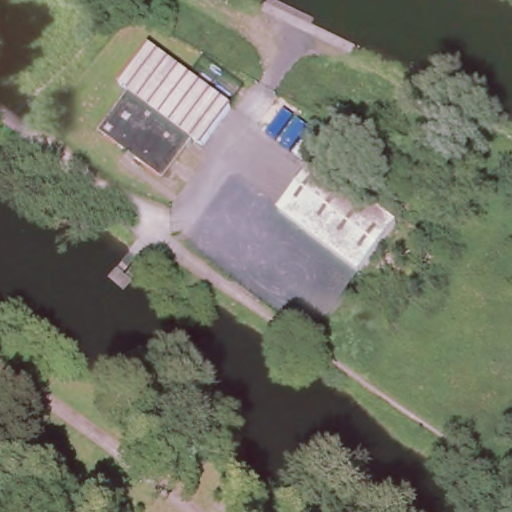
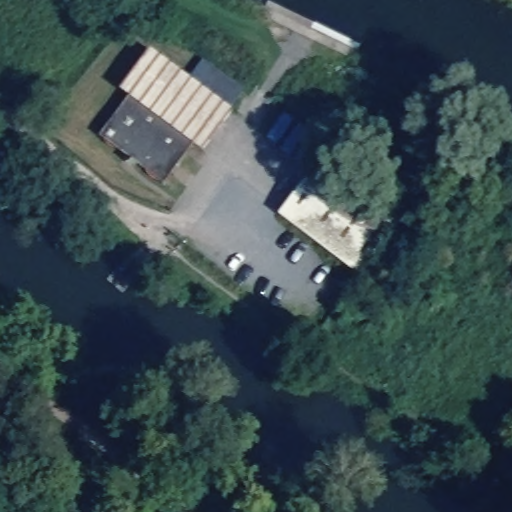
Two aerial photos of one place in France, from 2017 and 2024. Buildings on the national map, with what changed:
unchanged [(157,55),(238,120),(207,156),(199,150),(166,190),(105,140),(137,101),(127,93),(157,55)]
unchanged [(360,280),(282,217),(320,170),(396,232),(360,280)]

